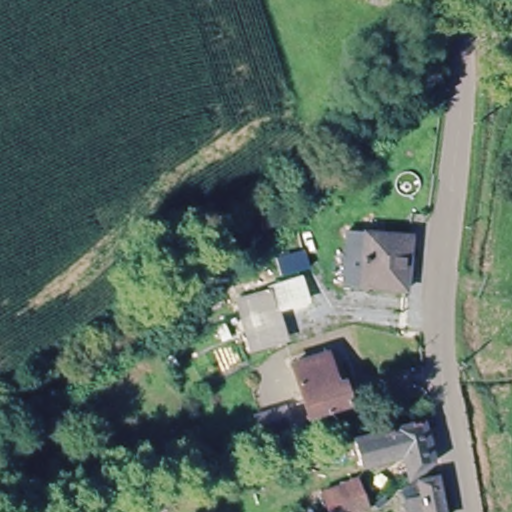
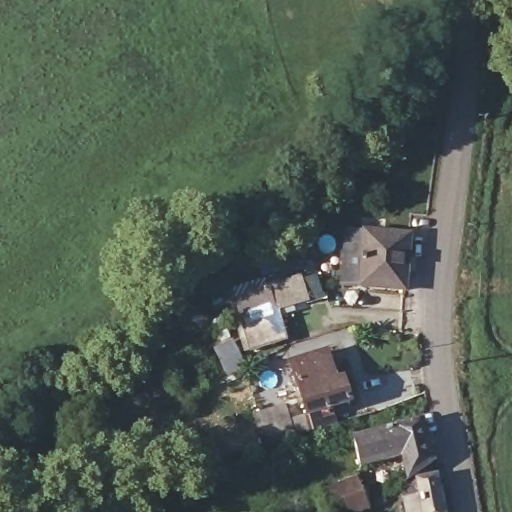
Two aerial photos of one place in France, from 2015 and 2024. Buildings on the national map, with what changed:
unchanged [(413,233),(406,290),(345,284),(351,228),(413,233)]
unchanged [(243,313),(277,301),(276,299),(306,290),(313,312),(283,321),(292,352),(258,361),(248,328),(243,313)]
unchanged [(264,442),(255,413),(283,403),(289,424),(305,418),(289,361),(323,350),(331,379),(339,377),(345,399),(325,406),(330,420),(309,427),(264,442)]
unchanged [(436,460),(411,481),(406,461),(365,474),(356,445),(423,424),(436,460)]
unchanged [(408,512),(407,501),(423,499),(421,481),(439,479),(445,512),(408,512)]
unchanged [(329,512),(325,496),(362,483),(370,511),(367,512),(329,512)]

